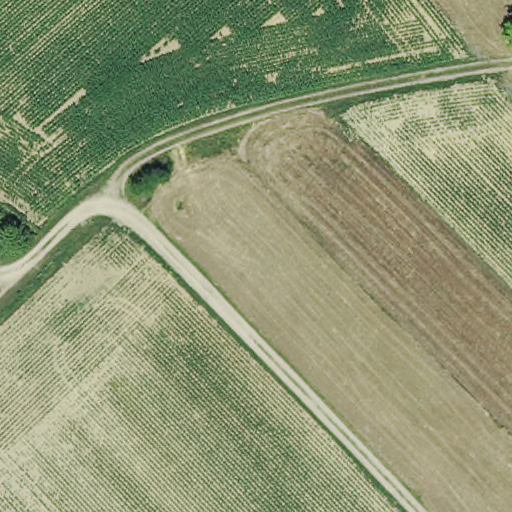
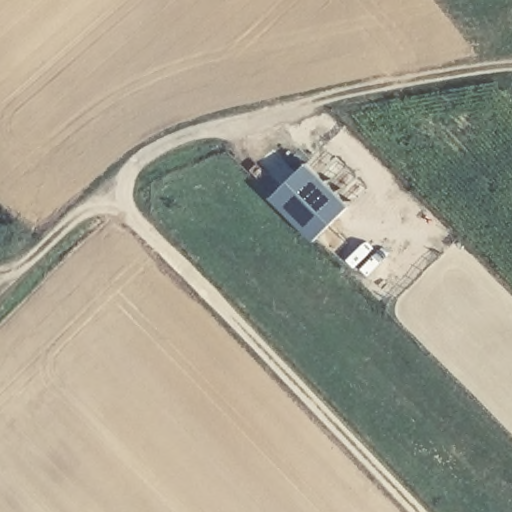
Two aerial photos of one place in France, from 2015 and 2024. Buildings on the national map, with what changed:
new [(307,161),(350,205),(315,240),(272,197),(307,161)]

